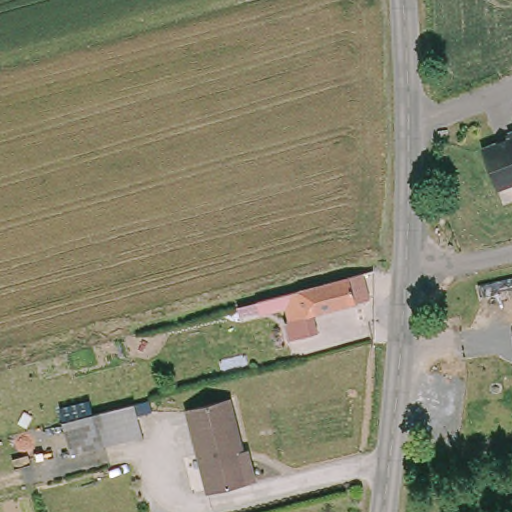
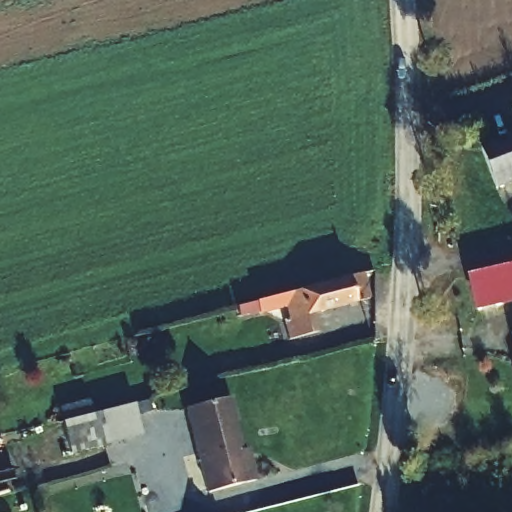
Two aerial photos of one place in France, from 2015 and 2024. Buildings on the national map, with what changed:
unchanged [(510,129),(512,128),(512,134),(510,129)]
unchanged [(512,134),(512,183),(497,189),(482,145),(512,134)]
new [(512,261),(512,297),(474,306),(466,272),(512,261)]
unchanged [(368,302),(312,317),(316,338),(289,344),(283,320),(287,319),(285,312),(257,319),(253,305),(363,276),(368,302)]
unchanged [(240,447),(247,446),(253,473),(205,486),(187,405),(227,393),(240,447)]
unchanged [(147,398),(150,410),(138,412),(143,433),(70,453),(63,420),(147,398)]

